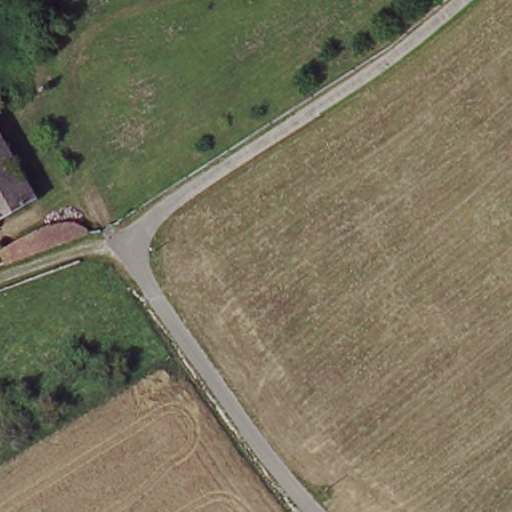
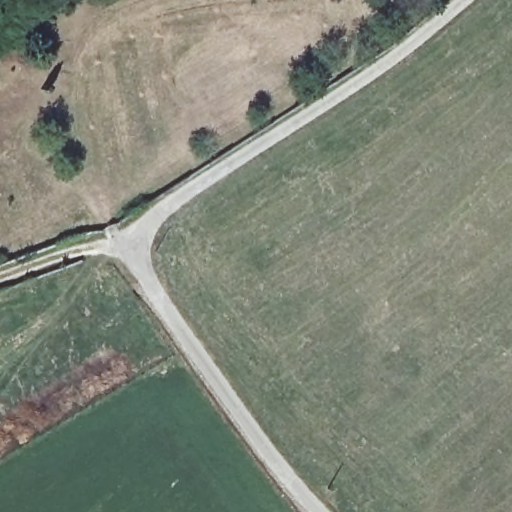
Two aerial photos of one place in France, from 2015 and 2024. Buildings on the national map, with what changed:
demolished [(0,216),(0,144),(30,195),(0,216)]

